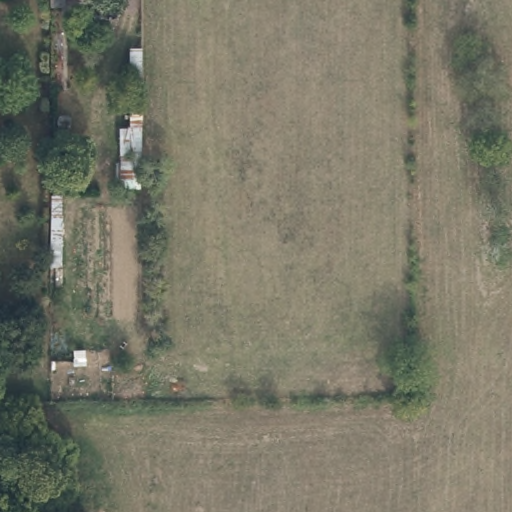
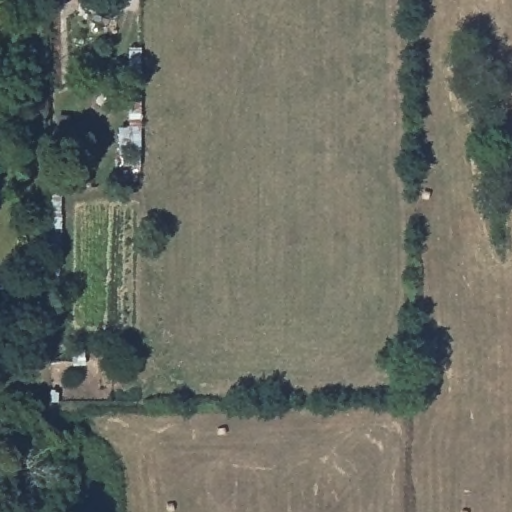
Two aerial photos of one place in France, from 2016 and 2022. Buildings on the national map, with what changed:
unchanged [(65,6),(51,7),(51,0),(65,0),(65,6)]

